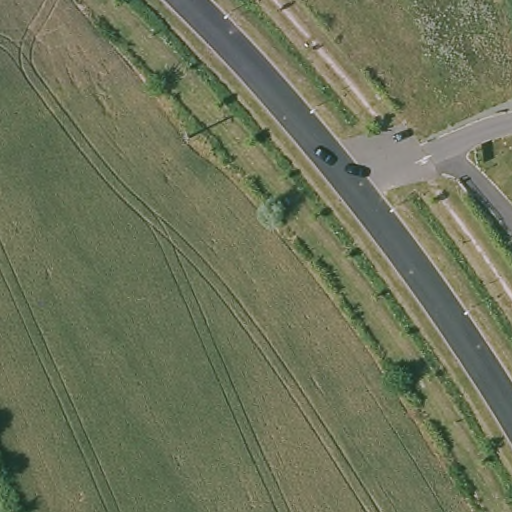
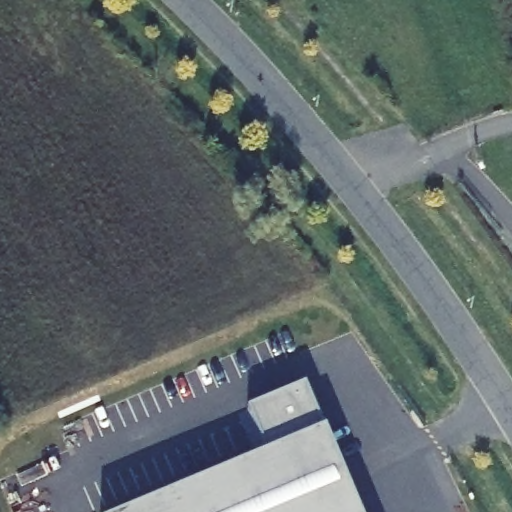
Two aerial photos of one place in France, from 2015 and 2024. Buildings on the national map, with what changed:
new [(130,512),(265,455),(247,412),(303,388),(355,512),(130,512)]

